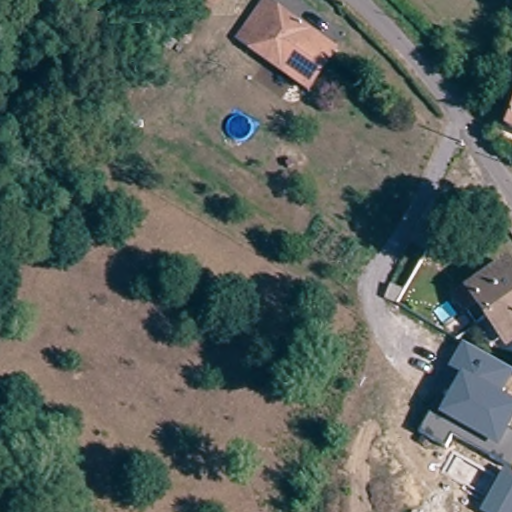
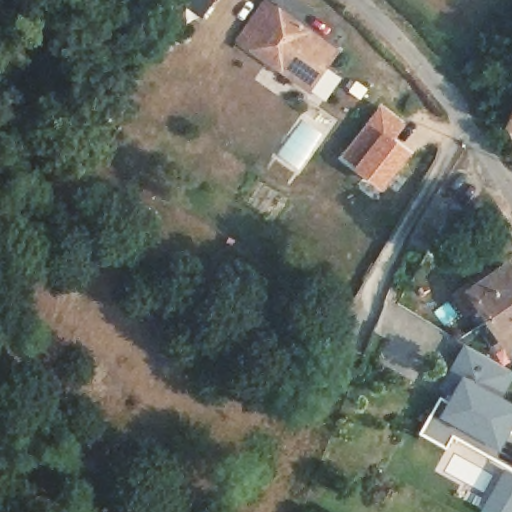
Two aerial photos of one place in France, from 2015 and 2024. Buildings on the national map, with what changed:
unchanged [(205,0),(212,5),(200,21),(188,12),(197,0),(205,0)]
unchanged [(209,0),(216,0),(214,3),(209,0)]
unchanged [(234,40),(262,0),(263,0),(333,51),(304,91),(234,40)]
new [(381,102),(406,122),(396,137),(415,152),(382,192),(337,157),(381,102)]
unchanged [(505,125),(512,110),(512,128),(505,125)]
unchanged [(427,246),(408,236),(428,199),(447,210),(465,220),(440,265),(422,255),(427,246)]
unchanged [(490,320),(471,294),(508,266),(512,272),(512,304),(490,320)]
unchanged [(509,347),(490,320),(512,304),(512,345),(509,347)]
unchanged [(512,370),(512,379),(503,395),(512,401),(512,430),(510,432),(512,433),(512,512),(481,512),(480,512),(505,467),(452,437),(445,448),(419,433),(451,372),(449,368),(464,344),(512,370)]

